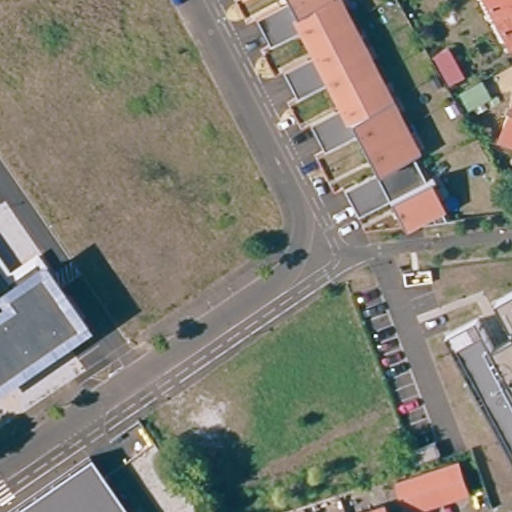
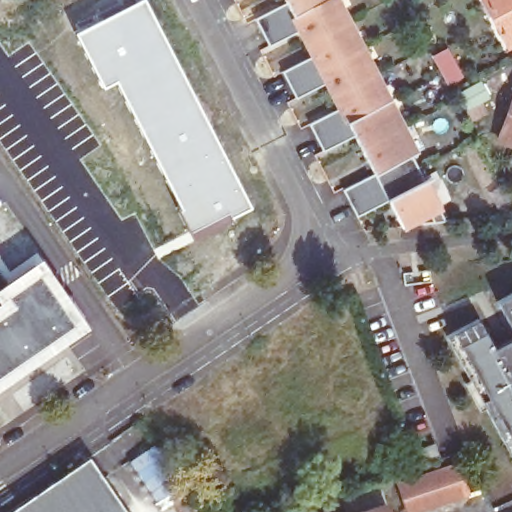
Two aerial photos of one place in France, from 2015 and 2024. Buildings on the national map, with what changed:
new [(133,0),(145,0),(252,206),(226,220),(224,216),(189,231),(170,190),(114,81),(102,87),(73,31),(133,0)]
unchanged [(434,210),(407,224),(393,198),(362,214),(348,186),(379,171),(360,132),(328,148),(314,121),(346,105),(332,80),(302,96),(287,69),(318,53),(306,28),(275,44),(261,16),(292,0),(291,0),(339,0),(443,205),(451,218),(439,220),(434,210)]
unchanged [(509,40),(487,0),(512,0),(512,38),(509,40)]
unchanged [(463,76),(448,85),(432,55),(447,46),(463,76)]
unchanged [(490,97),(464,113),(454,95),(481,80),(490,97)]
unchanged [(502,139),(512,110),(512,142),(502,139)]
unchanged [(36,252),(89,326),(0,385),(0,257),(10,271),(36,252)]
unchanged [(497,298),(512,291),(512,327),(497,298)]
unchanged [(483,405),(478,407),(465,380),(470,377),(446,330),(477,314),(492,343),(512,382),(512,462),(498,435),(483,405)]
unchanged [(492,343),(512,333),(512,382),(492,343)]
unchanged [(420,473),(415,460),(438,451),(443,465),(420,473)]
unchanged [(131,512),(11,512),(92,456),(131,512)]
unchanged [(473,505),(451,512),(407,512),(401,491),(463,473),(473,505)]
unchanged [(390,512),(385,512),(390,510),(390,512)]

